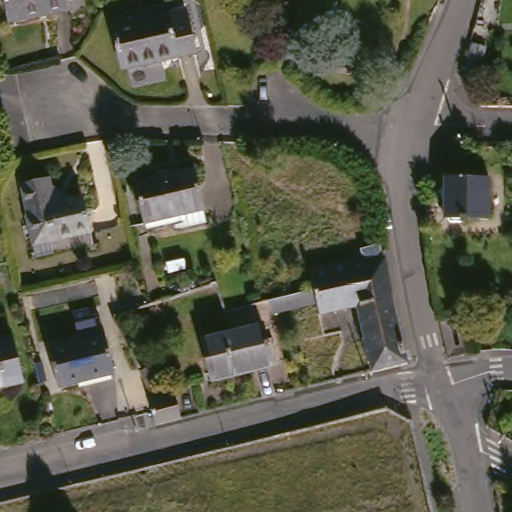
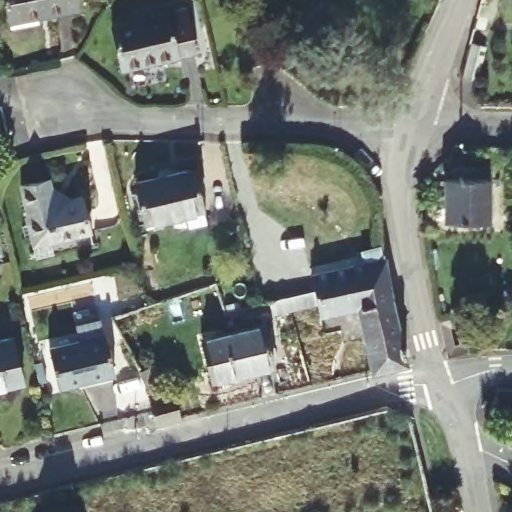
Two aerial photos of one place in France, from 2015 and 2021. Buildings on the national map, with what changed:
unchanged [(2,0),(73,0),(75,9),(41,16),(7,23),(2,0)]
unchanged [(193,56),(119,73),(111,29),(183,12),(188,34),(193,56)]
unchanged [(463,77),(471,46),(484,49),(475,80),(463,77)]
unchanged [(189,176),(197,217),(139,230),(131,190),(160,183),(189,176)]
unchanged [(24,235),(19,213),(21,212),(14,183),(42,177),(45,190),(49,188),(54,192),(59,195),(59,198),(74,196),(81,232),(43,241),(26,245),(24,235)]
unchanged [(484,180),(484,219),(462,219),(462,223),(444,223),(442,219),(439,219),(439,198),(433,198),(433,188),(439,188),(439,179),(484,180)]
unchanged [(310,277),(317,275),(384,256),(387,279),(314,298),(310,277)]
unchanged [(387,280),(406,374),(371,382),(369,377),(369,371),(366,372),(362,348),(364,346),(356,314),(321,323),(318,310),(291,318),(275,322),(271,309),(276,308),(288,305),(314,298),(387,279),(387,280)]
unchanged [(506,309),(502,294),(512,293),(512,309),(506,309)]
unchanged [(465,355),(464,356),(447,360),(439,324),(453,320),(452,317),(450,309),(464,304),(469,323),(464,325),(471,354),(465,355)]
unchanged [(208,383),(199,344),(259,329),(267,368),(238,375),(208,383)]
unchanged [(109,378),(53,390),(44,351),(99,337),(104,358),(109,378)]
unchanged [(0,391),(0,344),(13,340),(18,363),(23,385),(0,391)]
unchanged [(161,381),(147,388),(139,372),(153,365),(157,373),(161,381)]
unchanged [(179,419),(154,425),(152,412),(149,401),(153,400),(173,395),(177,407),(179,419)]

